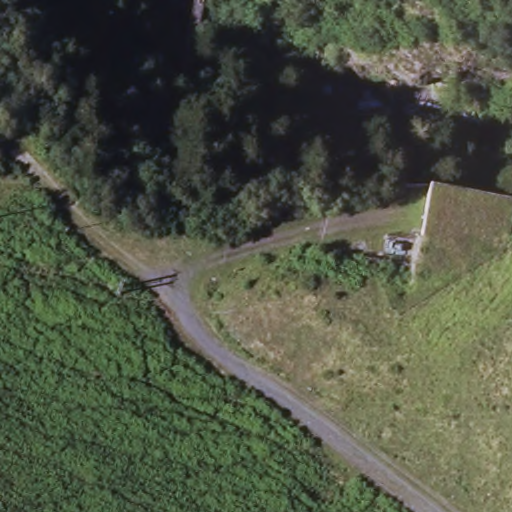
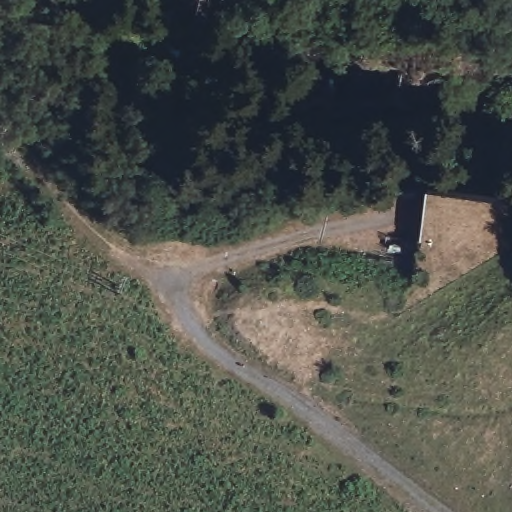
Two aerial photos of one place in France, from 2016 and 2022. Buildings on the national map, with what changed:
unchanged [(512,202),(512,258),(503,302),(410,285),(422,227),(429,186),(512,202)]

